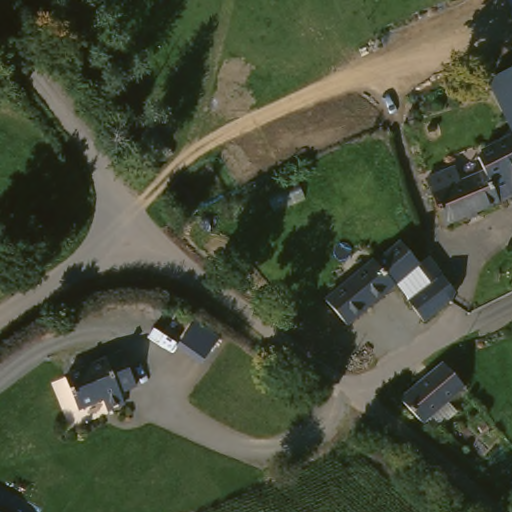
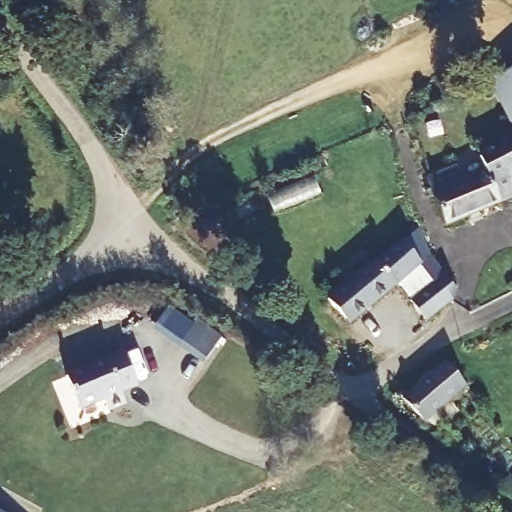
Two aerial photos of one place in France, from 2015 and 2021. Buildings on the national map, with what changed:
unchanged [(488,80),(512,68),(512,129),(488,80)]
unchanged [(448,220),(437,193),(429,174),(458,163),(463,178),(488,168),(482,153),(484,147),(512,137),(512,195),(448,220)]
unchanged [(337,328),(320,308),(316,303),(364,265),(365,264),(368,266),(368,267),(391,247),(393,246),(395,247),(412,268),(421,261),(449,295),(443,304),(436,308),(421,318),(415,322),(400,300),(423,285),(409,270),(337,328)]
unchanged [(178,340),(195,320),(218,339),(201,359),(178,340)]
unchanged [(115,391),(118,402),(100,407),(97,396),(71,402),(60,367),(122,351),(131,386),(115,391)]
unchanged [(471,416),(456,430),(437,415),(431,421),(404,395),(416,384),(420,382),(444,362),(466,386),(454,398),(471,416)]

